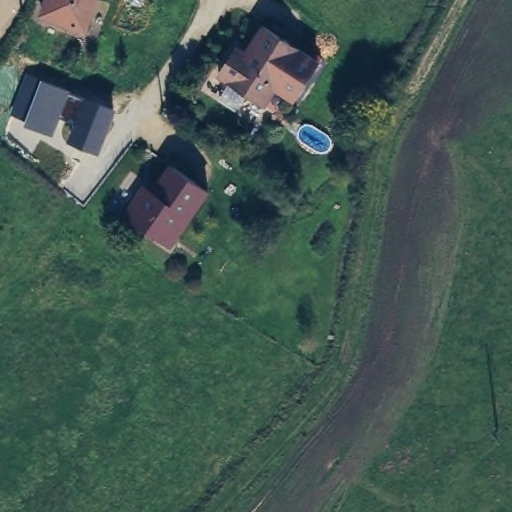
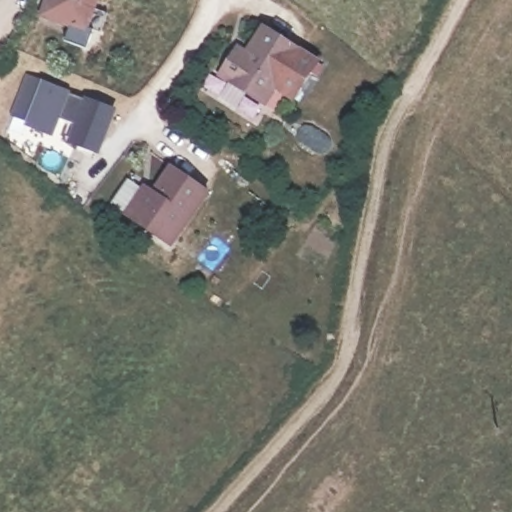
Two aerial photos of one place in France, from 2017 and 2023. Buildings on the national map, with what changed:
unchanged [(37,6),(41,0),(95,0),(77,31),(37,6)]
unchanged [(310,61),(286,98),(267,84),(256,102),(212,72),(230,47),(245,58),(251,50),(243,45),(256,25),(310,61)]
unchanged [(117,109),(100,155),(67,141),(73,124),(60,119),(53,136),(25,125),(26,120),(10,115),(25,75),(117,109)]
unchanged [(160,239),(141,225),(129,217),(137,205),(147,190),(162,200),(167,193),(160,189),(172,169),(207,191),(178,234),(171,246),(160,239)]

